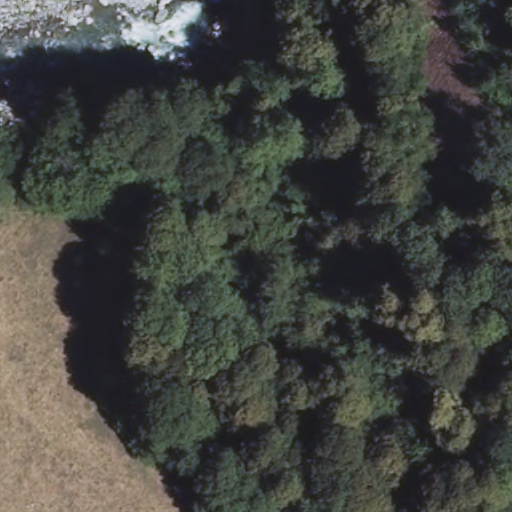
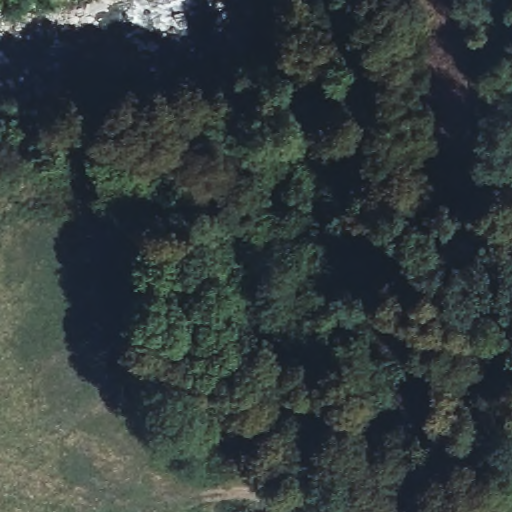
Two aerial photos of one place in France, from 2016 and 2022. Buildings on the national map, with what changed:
[]

